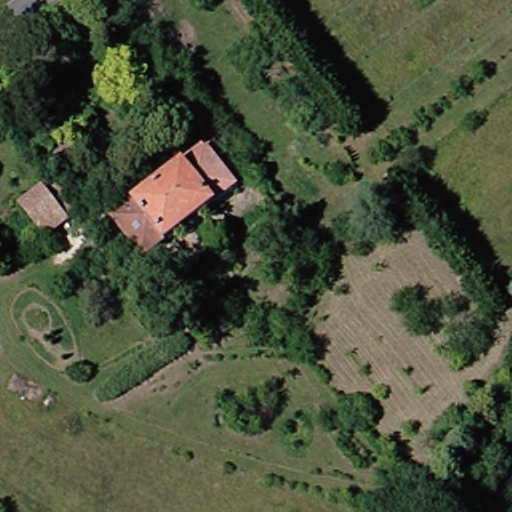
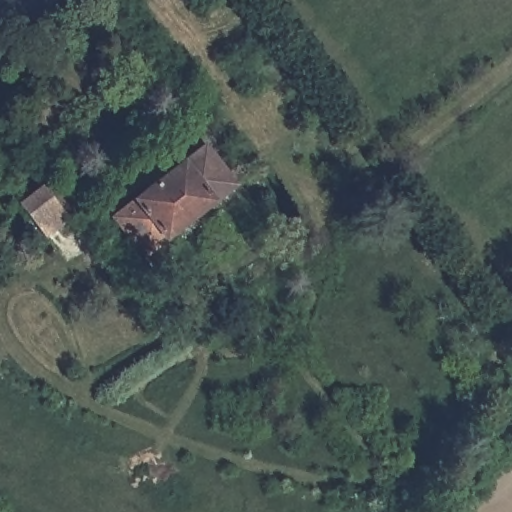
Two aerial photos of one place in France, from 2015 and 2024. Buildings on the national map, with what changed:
unchanged [(231,184),(135,258),(103,218),(200,146),(231,184)]
unchanged [(65,218),(42,238),(18,206),(41,186),(65,218)]

